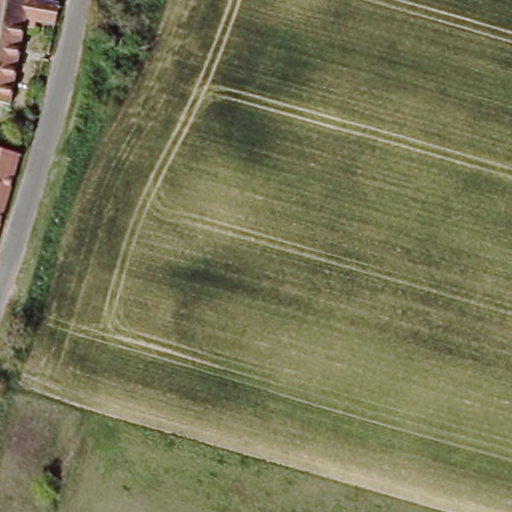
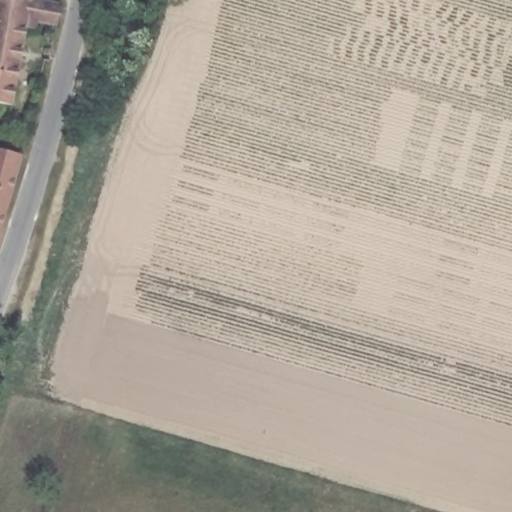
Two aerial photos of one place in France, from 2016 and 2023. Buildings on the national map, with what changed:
unchanged [(56,29),(40,24),(38,32),(25,30),(9,108),(0,106),(0,0),(53,0),(63,3),(56,29)]
unchanged [(23,156),(0,236),(0,149),(23,156)]

